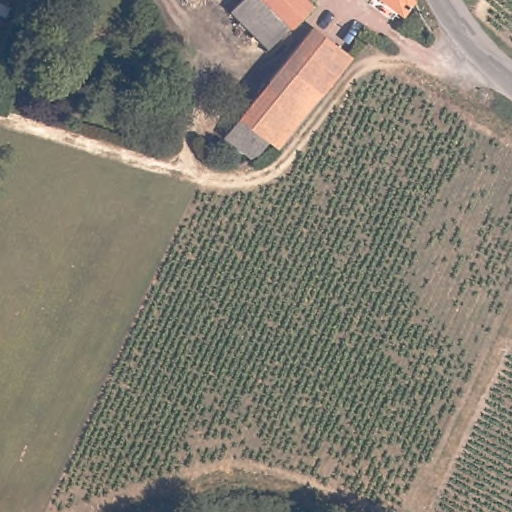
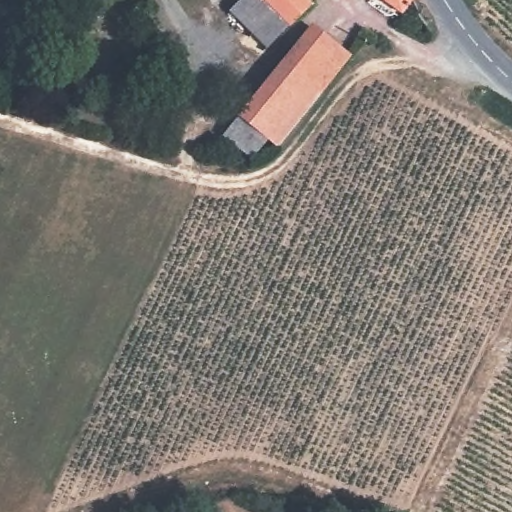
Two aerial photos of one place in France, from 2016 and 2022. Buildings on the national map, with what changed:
unchanged [(273,41),(233,7),(239,0),(309,0),(273,41)]
unchanged [(386,0),(418,0),(405,15),(386,0)]
unchanged [(351,53),(277,147),(264,137),(248,154),(222,131),(311,22),(351,53)]

